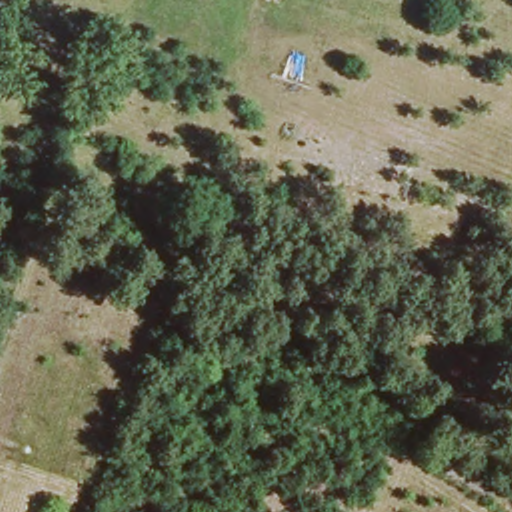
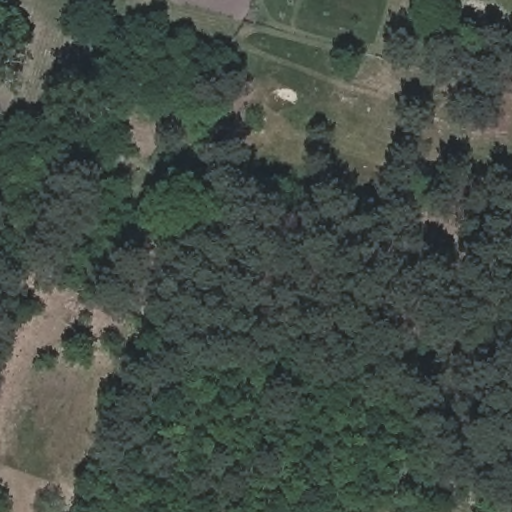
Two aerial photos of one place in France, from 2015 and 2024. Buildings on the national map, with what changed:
[]

